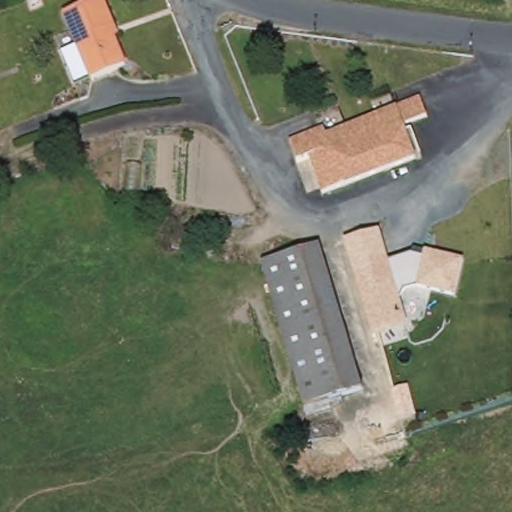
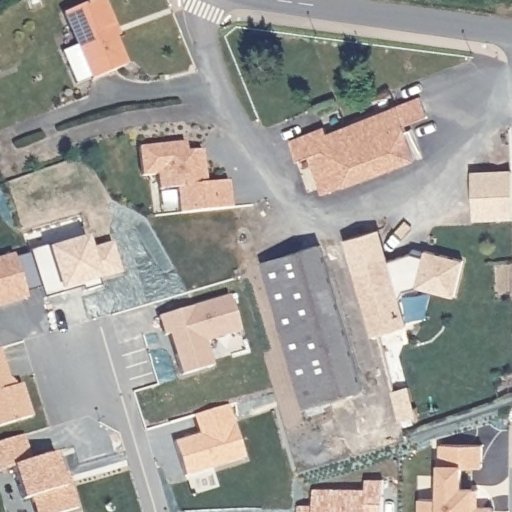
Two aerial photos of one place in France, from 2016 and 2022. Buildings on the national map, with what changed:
unchanged [(93,0),(95,2),(100,0),(110,0),(123,29),(107,35),(118,66),(84,81),(55,13),(86,0),(93,0)]
unchanged [(322,134),(417,96),(425,115),(400,124),(402,128),(407,143),(413,159),(321,193),(319,190),(311,172),(299,176),(284,139),(319,126),(322,134)]
new [(180,214),(177,187),(160,189),(159,173),(143,175),(139,146),(186,141),(187,151),(202,150),(207,183),(228,181),(231,207),(180,214)]
new [(471,171),(511,169),(512,193),(512,218),(473,219),(471,171)]
unchanged [(457,296),(417,287),(404,292),(400,299),(407,324),(372,335),(344,240),(380,229),(390,260),(412,252),(424,257),(427,250),(466,259),(457,296)]
new [(51,241),(53,246),(88,235),(91,247),(113,240),(122,267),(100,274),(103,282),(86,288),(83,280),(65,285),(67,291),(47,297),(31,248),(51,241)]
unchanged [(315,246),(353,379),(357,390),(335,396),(301,407),(260,263),(274,259),(315,246)]
new [(0,305),(0,257),(14,254),(27,298),(0,305)]
new [(85,285),(67,291),(65,285),(83,280),(85,285)]
new [(205,342),(211,365),(181,375),(169,335),(163,337),(157,317),(230,296),(240,331),(205,342)]
new [(0,425),(0,348),(8,376),(17,384),(22,383),(32,417),(0,425)]
new [(247,457),(187,475),(177,440),(202,433),(196,414),(231,404),(247,457)]
new [(58,512),(35,512),(30,494),(23,496),(14,467),(0,470),(0,441),(25,434),(33,460),(55,454),(64,485),(70,483),(77,507),(58,512)]
new [(418,497),(438,497),(438,463),(438,445),(481,445),(481,466),(462,466),(462,488),(477,488),(477,506),(494,507),(494,512),(418,512),(418,497)]
new [(314,508),(314,492),(366,492),(366,482),(383,483),(383,512),(298,512),(298,507),(314,508)]

